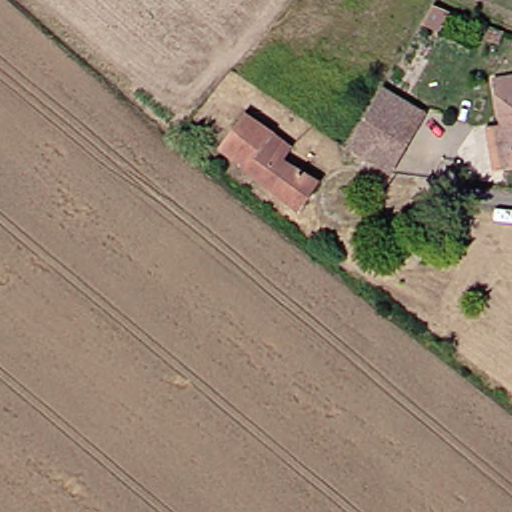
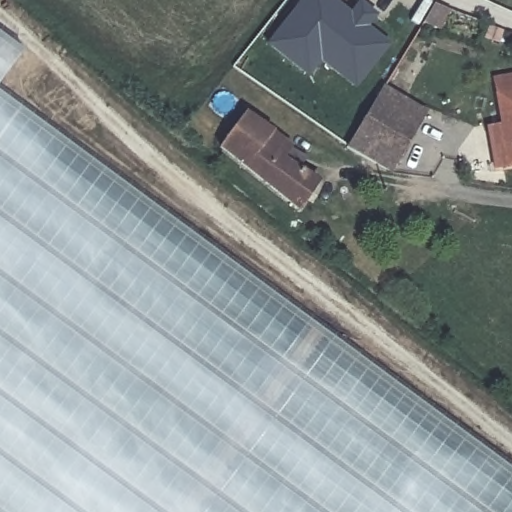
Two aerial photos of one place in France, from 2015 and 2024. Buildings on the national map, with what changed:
new [(320,61),(307,74),(268,44),(304,0),(333,0),(388,43),(354,87),(320,61)]
unchanged [(449,11),(436,32),(422,23),(436,3),(449,11)]
new [(0,83),(0,36),(22,52),(0,83)]
unchanged [(484,138),(484,125),(491,125),(489,77),(512,77),(512,159),(501,159),(485,159),(484,138)]
new [(0,95),(512,470),(512,512),(0,512),(0,95)]
unchanged [(372,95),(412,120),(389,156),(383,167),(345,143),(352,132),(372,95)]
unchanged [(291,210),(214,149),(240,113),(270,134),(287,146),(278,157),(311,182),(291,210)]

